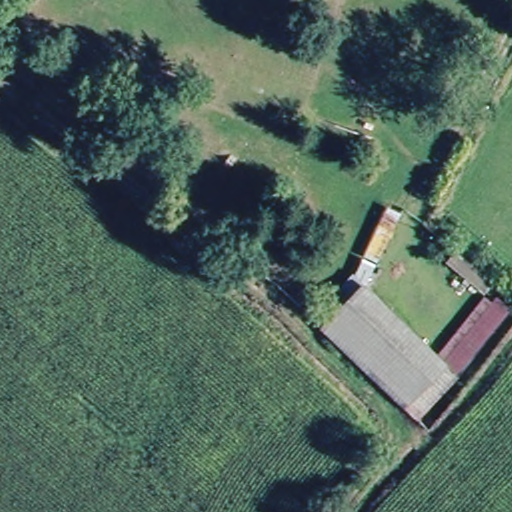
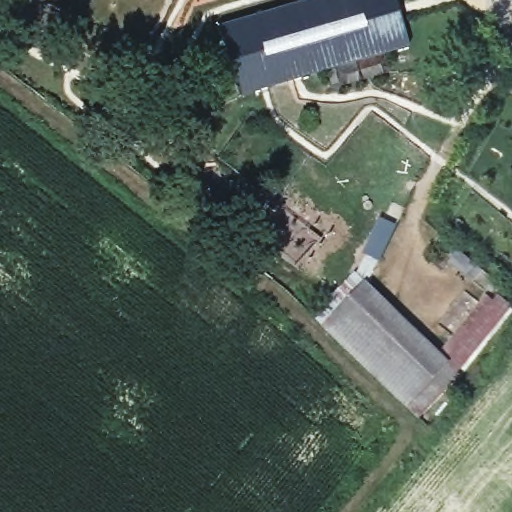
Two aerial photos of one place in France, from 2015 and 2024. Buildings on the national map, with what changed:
new [(309,0),(394,0),(408,46),(237,96),(217,27),(309,0)]
unchanged [(352,272),(386,199),(405,205),(371,280),(375,283),(370,290),(364,285),(326,331),(312,320),(352,272)]
unchanged [(370,290),(454,360),(413,405),(326,331),(364,285),(370,290)]
unchanged [(455,360),(505,293),(512,298),(512,309),(464,369),(423,413),(413,405),(454,360),(455,360)]

